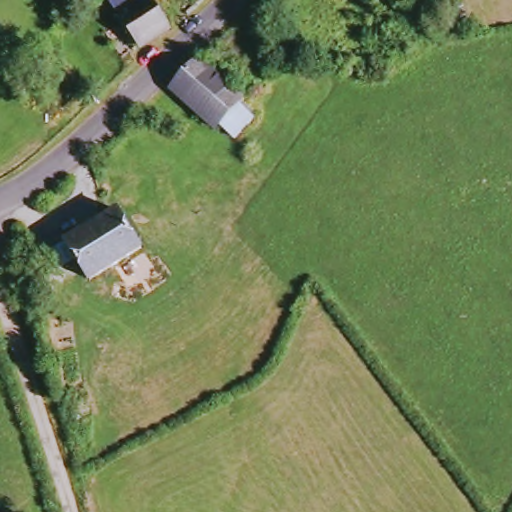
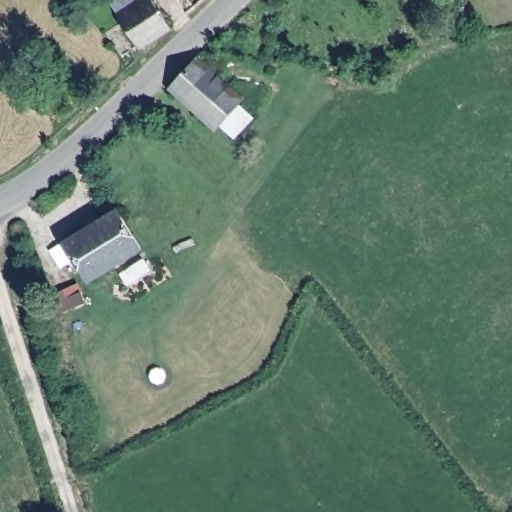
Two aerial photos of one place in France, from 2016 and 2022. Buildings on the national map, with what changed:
unchanged [(123,0),(163,0),(171,13),(174,20),(143,43),(122,15),(114,5),(123,0)]
unchanged [(241,144),(226,130),(224,132),(174,91),(208,57),(254,99),(244,110),(259,123),(241,144)]
unchanged [(72,246),(124,212),(148,255),(98,287),(72,246)]

